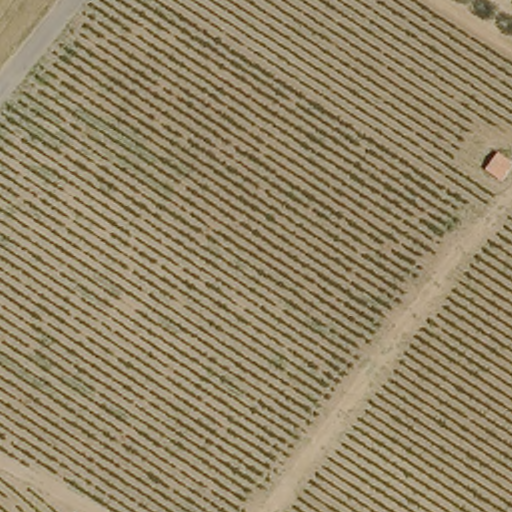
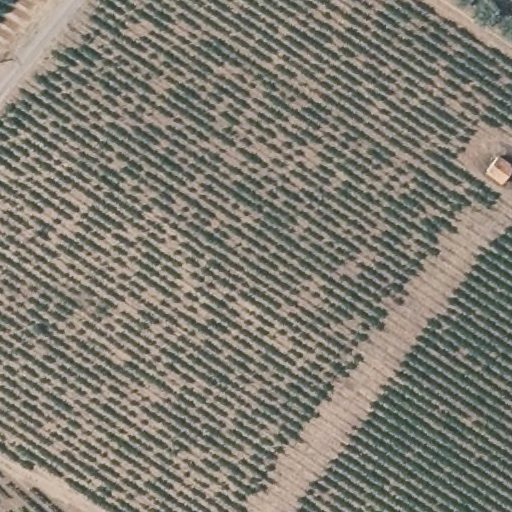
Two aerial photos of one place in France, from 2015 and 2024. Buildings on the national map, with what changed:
unchanged [(512,163),(512,172),(503,184),(482,169),(495,150),(512,163)]

